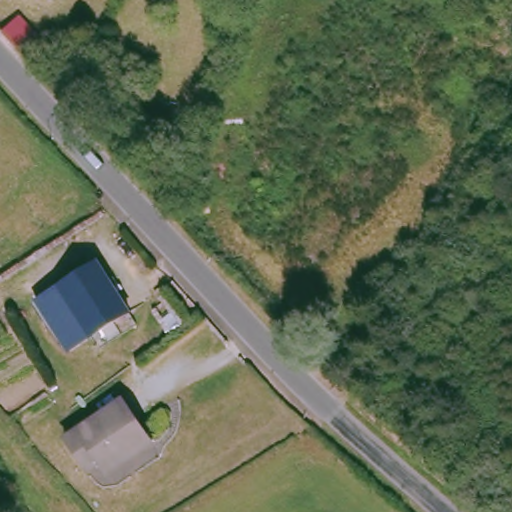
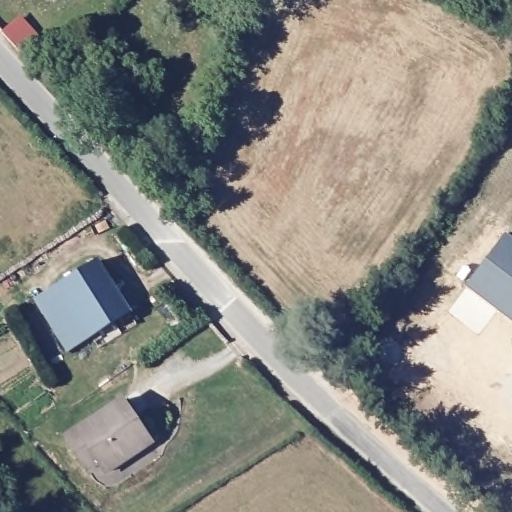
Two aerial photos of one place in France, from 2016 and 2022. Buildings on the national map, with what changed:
unchanged [(30,50),(20,59),(3,41),(13,32),(30,50)]
new [(506,234),(512,238),(512,322),(465,288),(506,234)]
unchanged [(125,308),(104,322),(112,335),(96,345),(87,331),(54,279),(92,256),(125,308)]
unchanged [(87,331),(65,346),(32,294),(54,279),(87,331)]
unchanged [(145,444),(106,470),(99,460),(87,468),(65,434),(116,400),(145,444)]

